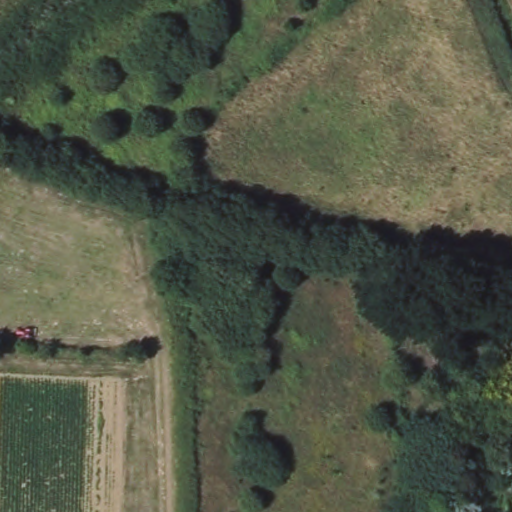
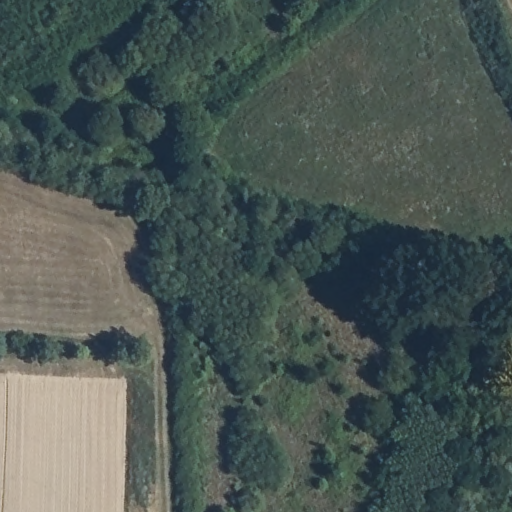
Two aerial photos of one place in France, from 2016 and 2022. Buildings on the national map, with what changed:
[]

